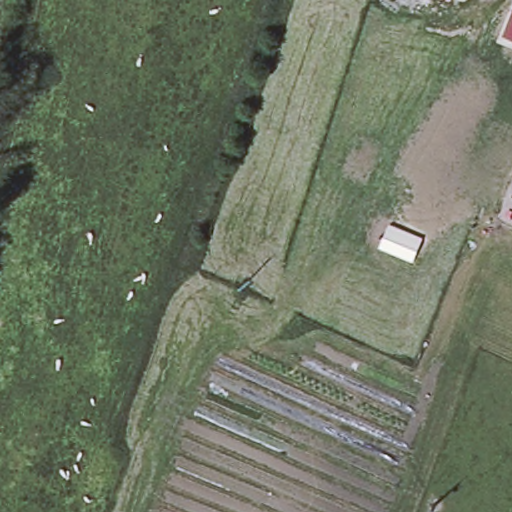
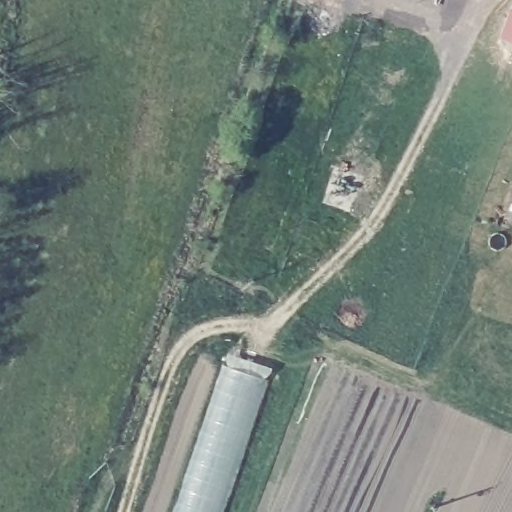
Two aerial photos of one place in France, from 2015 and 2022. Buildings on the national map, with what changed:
new [(229,365),(265,375),(219,512),(179,512),(229,365)]

